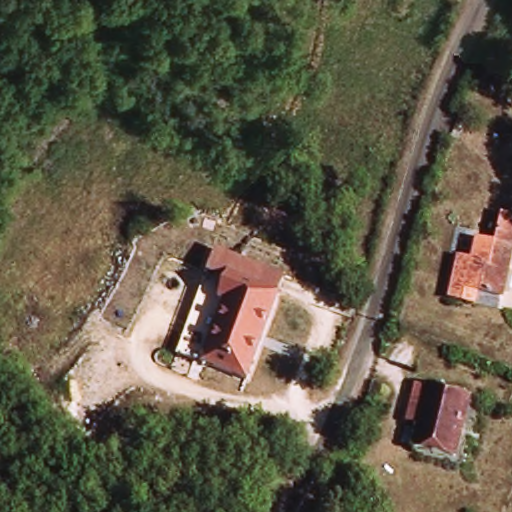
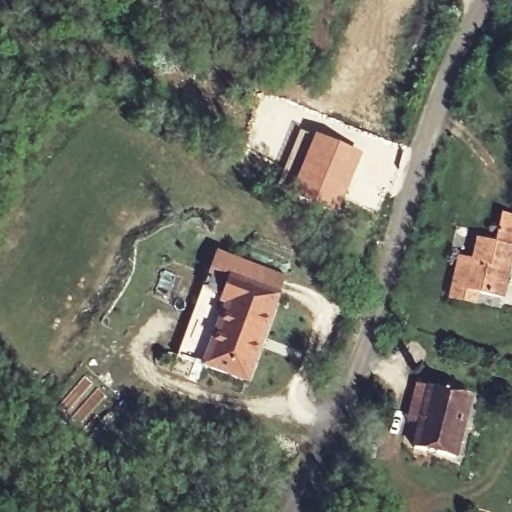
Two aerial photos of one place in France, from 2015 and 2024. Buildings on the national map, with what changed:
new [(335,217),(285,195),(275,189),(299,129),(314,134),(363,151),(335,217)]
unchanged [(454,268),(454,257),(473,258),(477,236),(492,239),(496,212),(512,213),(512,243),(503,296),(476,292),(473,306),(450,302),(452,287),(454,268)]
unchanged [(247,382),(177,357),(208,270),(229,277),(234,260),(284,277),(247,382)]
unchanged [(454,457),(412,449),(417,424),(405,422),(412,382),(425,386),(466,393),(454,457)]

